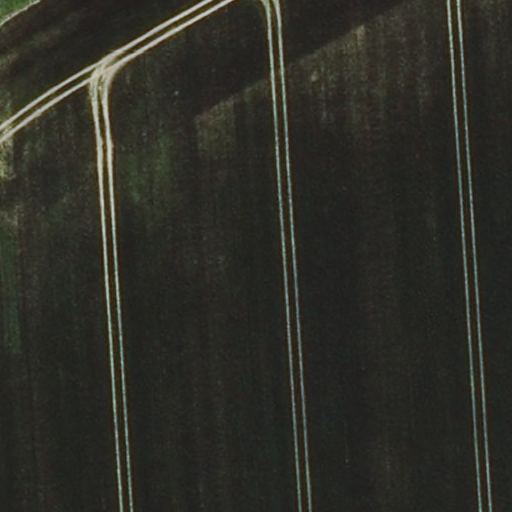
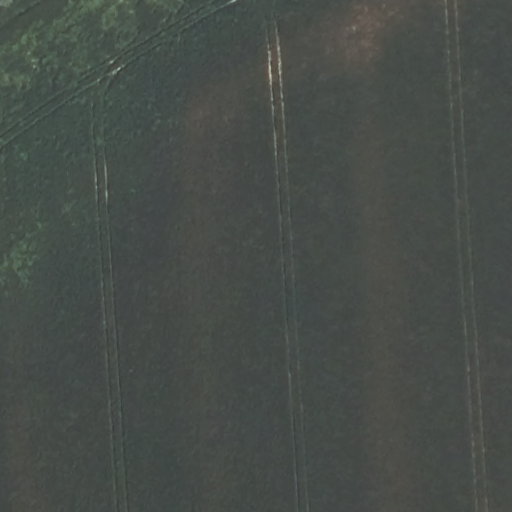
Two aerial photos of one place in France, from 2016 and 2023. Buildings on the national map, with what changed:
[]

